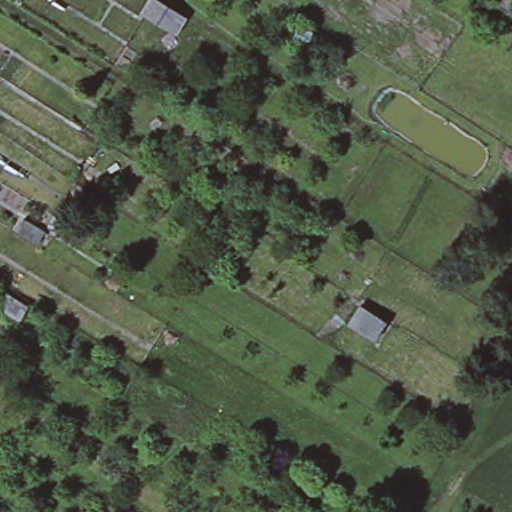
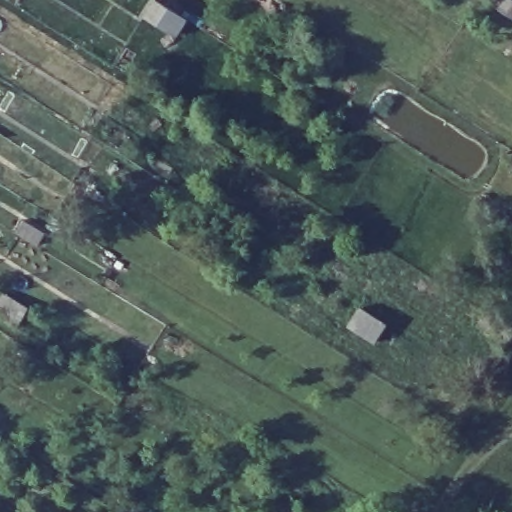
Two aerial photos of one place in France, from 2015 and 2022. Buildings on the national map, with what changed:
unchanged [(512,17),(493,4),(496,0),(512,0),(512,17)]
unchanged [(386,323),(374,341),(348,325),(360,306),(386,323)]

